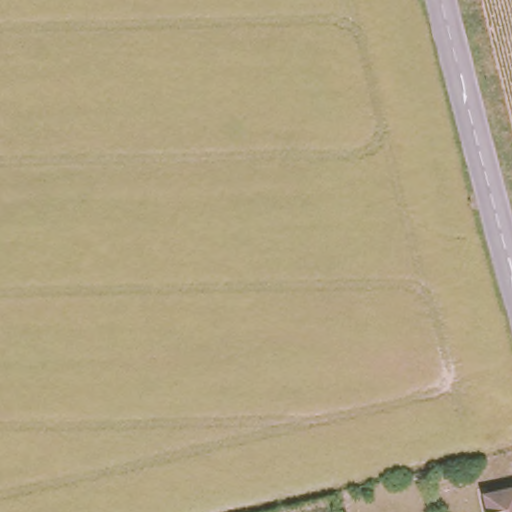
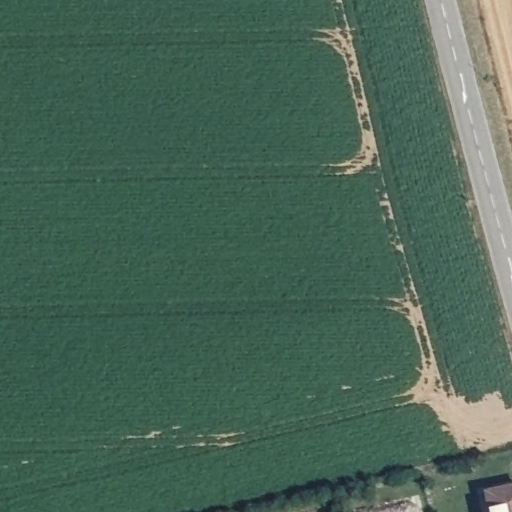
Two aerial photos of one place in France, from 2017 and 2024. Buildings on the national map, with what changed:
unchanged [(512,480),(512,512),(485,512),(480,487),(512,480)]

